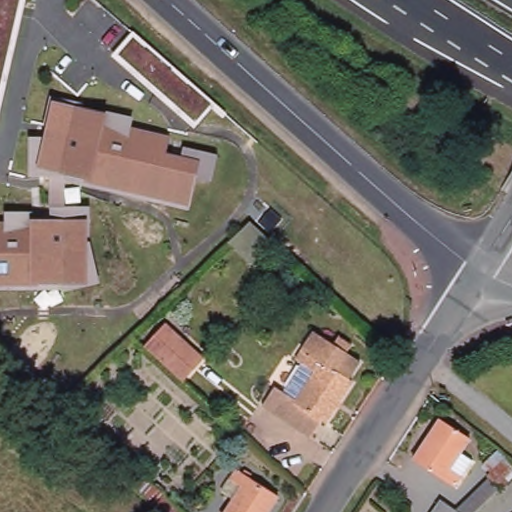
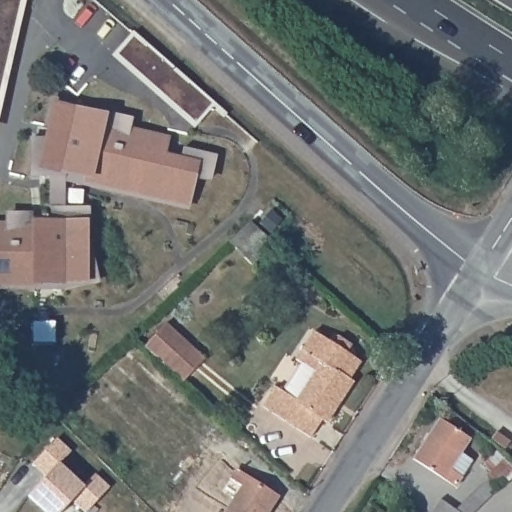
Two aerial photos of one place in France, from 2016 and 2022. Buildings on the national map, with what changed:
unchanged [(0,111),(0,0),(25,0),(0,111)]
unchanged [(111,57),(134,31),(216,104),(194,128),(111,57)]
unchanged [(65,208),(90,206),(101,283),(62,292),(62,288),(0,288),(0,222),(4,221),(5,211),(35,212),(36,218),(51,217),(49,178),(30,178),(29,137),(45,137),(52,99),(133,118),(131,129),(171,139),(168,152),(182,156),(184,147),(217,155),(211,182),(198,179),(190,209),(63,182),(65,208)]
new [(247,224),(270,245),(249,267),(225,245),(247,224)]
unchanged [(167,327),(202,362),(180,383),(144,349),(167,327)]
unchanged [(361,367),(310,440),(262,409),(313,335),(361,367)]
unchanged [(469,440),(460,453),(471,461),(455,486),(413,459),(438,419),(469,440)]
new [(32,464),(56,439),(71,452),(59,465),(83,487),(95,475),(109,488),(87,512),(83,512),(72,501),(62,512),(44,512),(28,496),(46,477),(32,464)]
unchanged [(456,509),(489,477),(487,476),(491,472),(482,463),(498,450),(507,456),(512,461),(512,478),(477,512),(431,512),(439,499),(456,509)]
unchanged [(229,480),(235,470),(277,498),(268,512),(225,512),(240,487),(229,480)]

